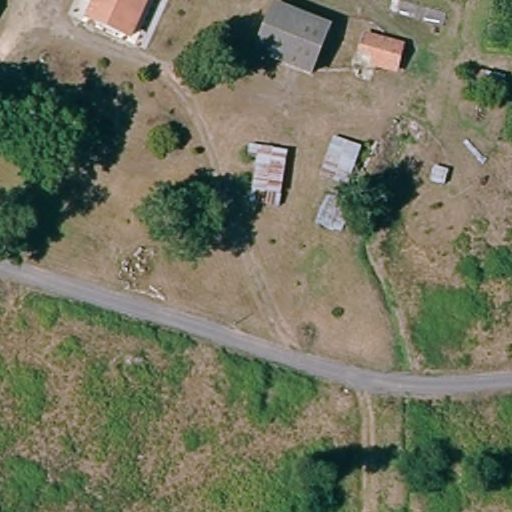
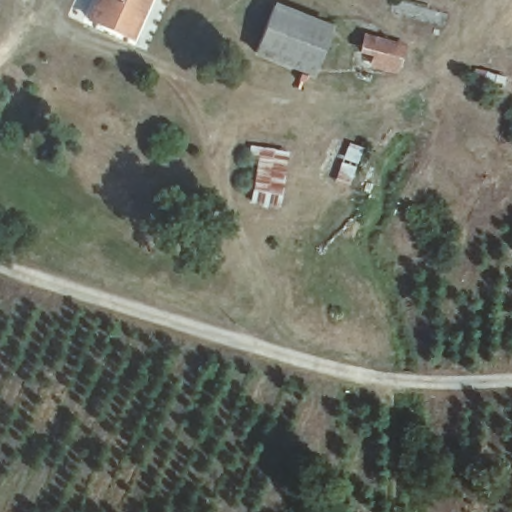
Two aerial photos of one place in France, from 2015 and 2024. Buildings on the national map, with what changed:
unchanged [(148,2),(133,41),(103,28),(114,0),(143,0),(148,2)]
unchanged [(148,2),(143,0),(148,0),(148,2)]
unchanged [(312,71),(262,52),(278,12),(327,30),(312,71)]
unchanged [(361,31),(407,40),(399,76),(354,65),(361,31)]
unchanged [(256,156),(288,159),(284,203),(252,202),(256,156)]

